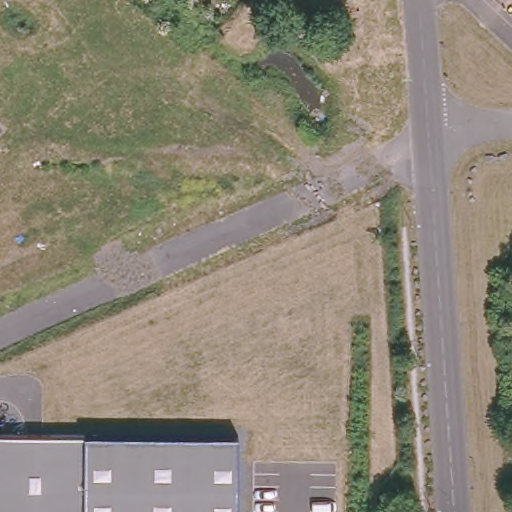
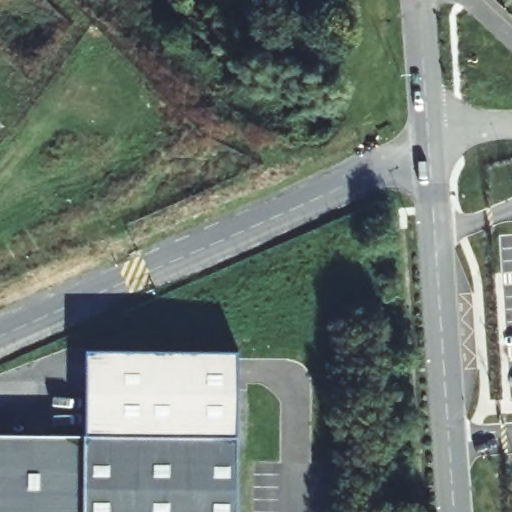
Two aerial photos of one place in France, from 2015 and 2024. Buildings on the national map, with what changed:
new [(87,349),(238,351),(237,437),(87,434),(87,349)]
unchanged [(236,512),(0,512),(0,434),(80,434),(237,437),(236,512)]

